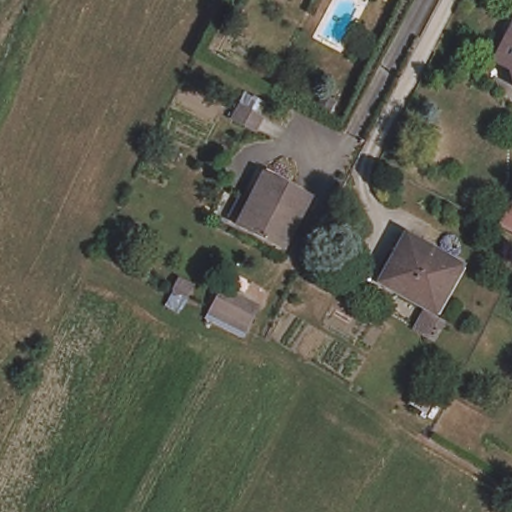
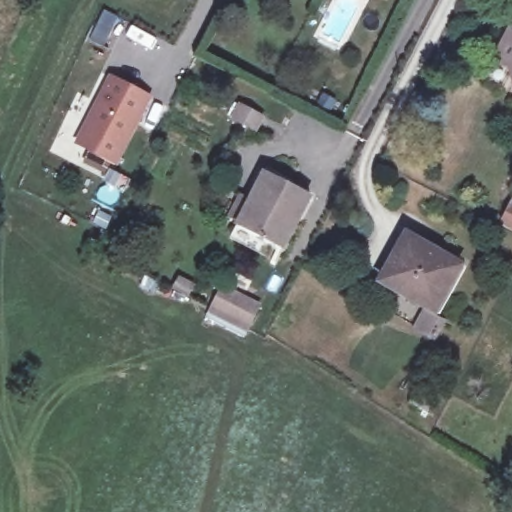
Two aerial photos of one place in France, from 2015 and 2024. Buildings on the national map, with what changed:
unchanged [(512,71),(510,71),(495,62),(512,32),(512,73),(512,71)]
new [(109,76),(147,95),(113,160),(76,140),(109,76)]
unchanged [(252,128),(227,116),(235,100),(260,112),(252,128)]
unchanged [(286,252),(241,228),(243,223),(237,219),(246,200),(253,204),(255,199),(267,176),(275,179),(313,199),(286,252)]
new [(512,208),(512,229),(503,224),(512,208)]
unchanged [(442,277),(436,274),(422,300),(371,274),(395,232),(433,253),(437,248),(453,257),(442,277)]
unchanged [(202,317),(205,310),(208,304),(215,292),(252,311),(244,327),(242,330),(240,336),(202,317)]
unchanged [(415,302),(430,310),(422,326),(407,317),(415,302)]
unchanged [(433,395),(423,411),(403,399),(413,382),(433,395)]

